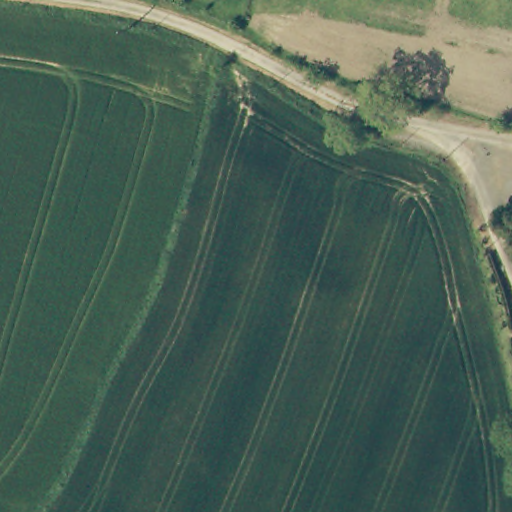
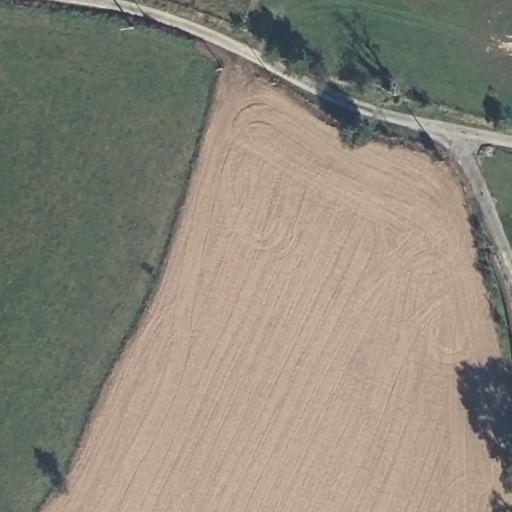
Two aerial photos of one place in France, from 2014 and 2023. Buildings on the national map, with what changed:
unchanged [(508,124),(509,119),(512,109),(512,125),(508,124)]

